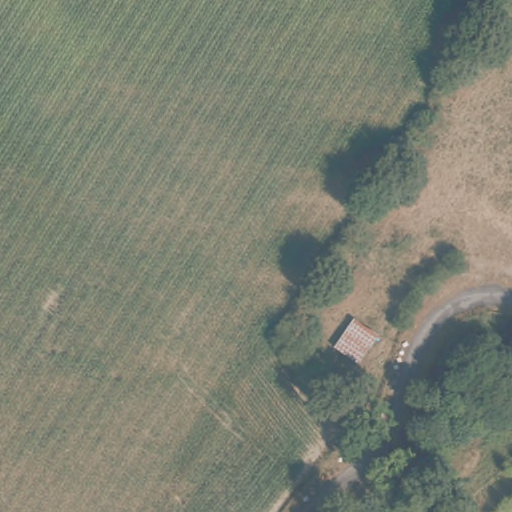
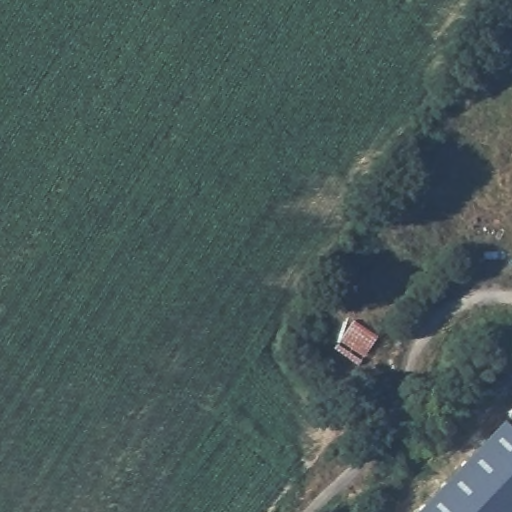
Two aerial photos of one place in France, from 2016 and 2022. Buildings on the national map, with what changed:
new [(503,418),(512,426),(512,512),(414,512),(503,418)]

